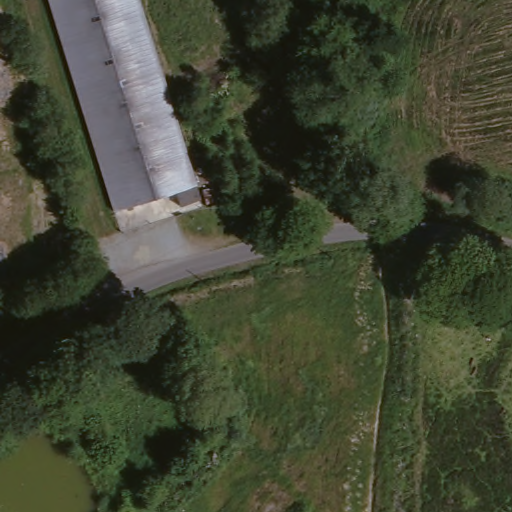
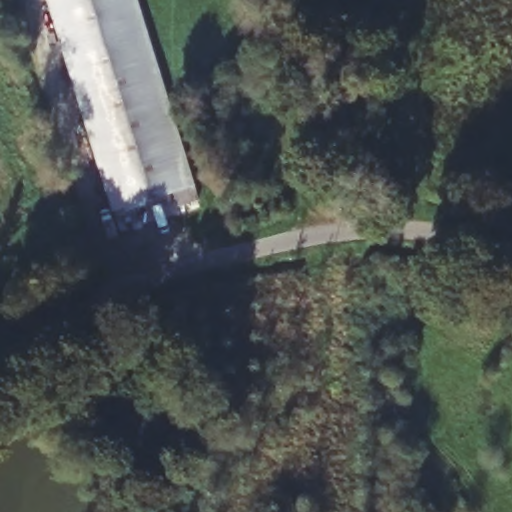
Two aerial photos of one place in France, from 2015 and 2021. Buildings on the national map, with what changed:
unchanged [(47,2),(54,0),(138,0),(203,203),(184,208),(181,196),(115,216),(47,2)]

